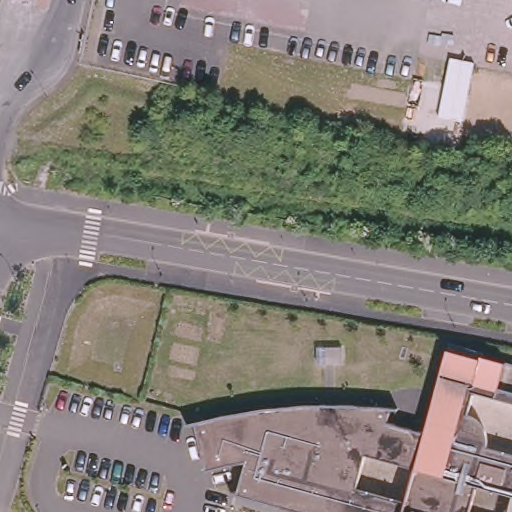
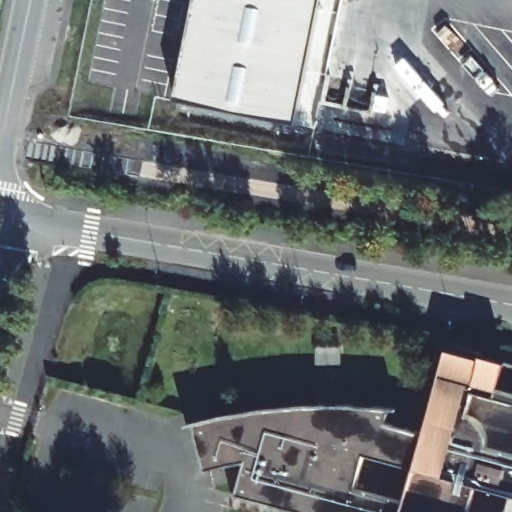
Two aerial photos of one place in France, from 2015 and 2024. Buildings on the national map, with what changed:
new [(195,0),(322,0),(296,120),(175,99),(195,0)]
unchanged [(236,495),(245,461),(206,470),(195,422),(248,411),(304,405),(350,405),(391,408),(387,424),(425,434),(447,352),(480,360),(482,355),(506,360),(512,362),(512,512),(301,512),(236,495)]

